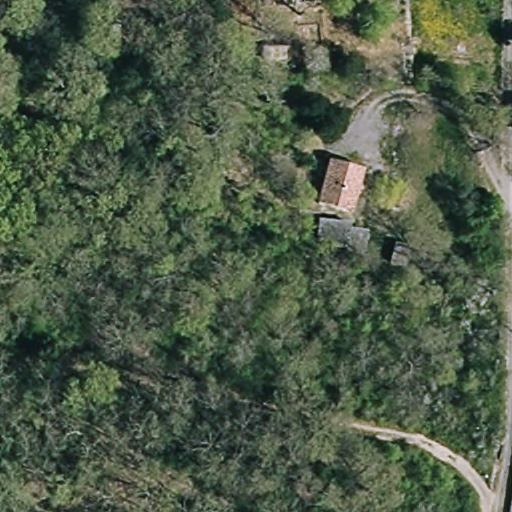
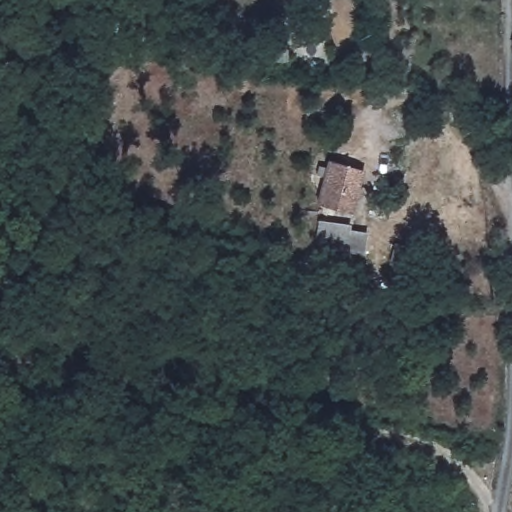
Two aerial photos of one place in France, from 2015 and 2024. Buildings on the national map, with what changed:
unchanged [(350,213),(318,206),(327,162),(360,169),(350,213)]
unchanged [(364,250),(318,243),(321,222),(352,226),(351,232),(367,235),(364,250)]

